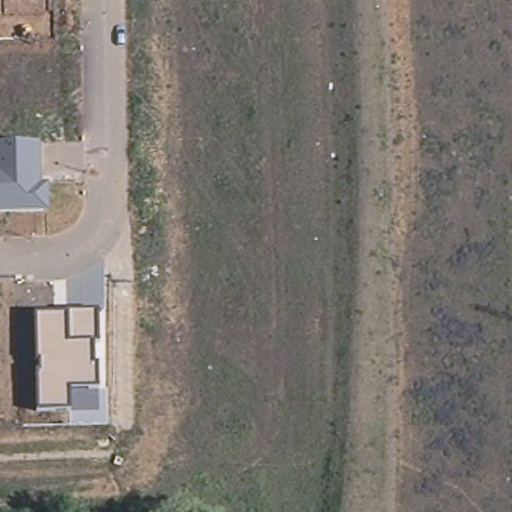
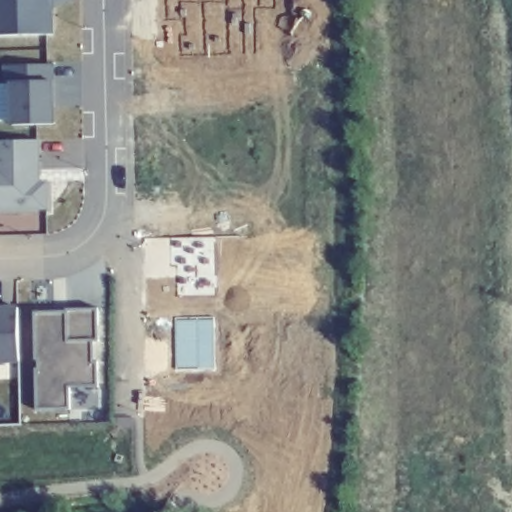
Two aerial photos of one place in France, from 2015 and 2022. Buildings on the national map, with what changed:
new [(49,0),(50,13),(55,12),(55,39),(0,38),(0,0),(49,0)]
new [(10,83),(2,83),(2,66),(53,65),(54,83),(54,126),(12,126),(10,83)]
unchanged [(41,139),(42,181),(49,181),(49,209),(0,210),(0,140),(41,139)]
new [(19,307),(20,367),(0,367),(0,307),(19,307)]
unchanged [(37,314),(69,312),(69,309),(99,308),(100,341),(94,342),(94,362),(98,362),(99,386),(70,387),(70,408),(38,408),(37,314)]

